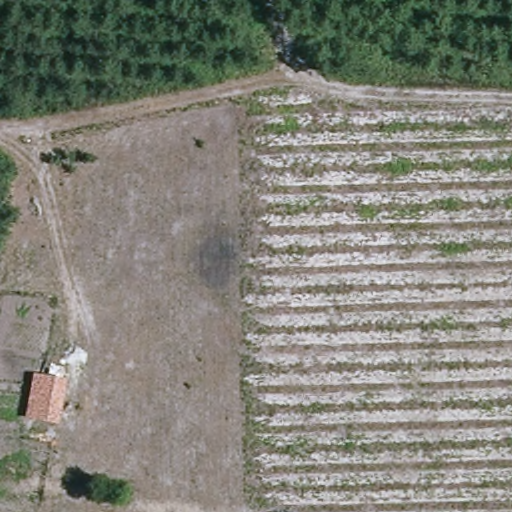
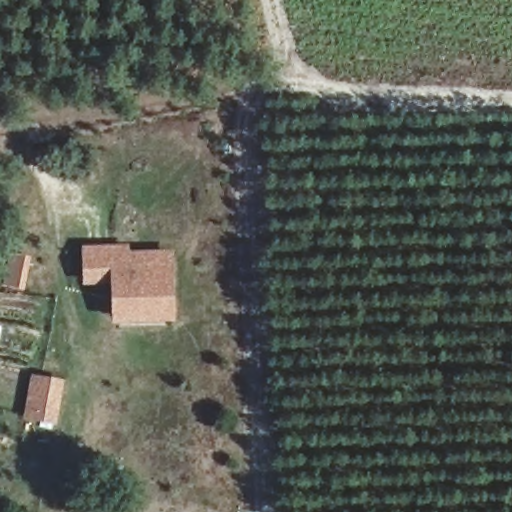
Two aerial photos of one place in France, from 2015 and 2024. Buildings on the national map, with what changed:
new [(128,244),(128,251),(173,250),(175,323),(112,325),(112,285),(83,285),(81,246),(128,244)]
unchanged [(23,420),(31,374),(64,381),(57,425),(23,420)]

